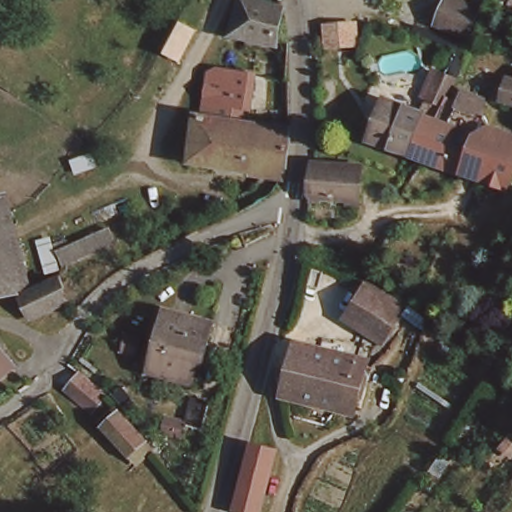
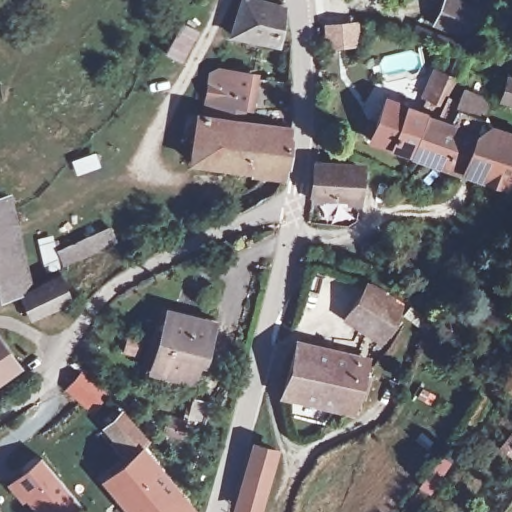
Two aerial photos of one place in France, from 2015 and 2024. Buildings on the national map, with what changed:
unchanged [(268,0),(279,3),(273,40),(226,30),(235,0),(268,0)]
unchanged [(446,0),(458,0),(476,7),(463,37),(435,25),(446,0)]
unchanged [(264,77),(260,110),(248,107),(244,107),(242,121),(293,129),(287,179),(191,162),(198,114),(207,116),(210,96),(214,68),(221,69),(253,75),(264,77)]
unchanged [(425,116),(431,99),(427,98),(436,72),(455,79),(446,99),(444,102),(459,107),(464,94),(485,102),(480,116),(484,118),(485,115),(499,139),(506,136),(507,134),(512,136),(512,173),(506,189),(481,179),(465,172),(411,154),(370,140),(388,99),(425,116)]
unchanged [(502,100),(507,77),(512,79),(512,103),(502,100)]
unchanged [(312,201),(315,166),(363,169),(358,205),(349,204),(321,202),(312,201)]
unchanged [(0,289),(0,192),(21,284),(0,289)]
unchanged [(59,251),(110,228),(116,241),(65,265),(59,251)]
unchanged [(64,296),(27,313),(17,292),(55,276),(64,296)]
unchanged [(399,301),(379,333),(344,310),(363,278),(399,301)]
unchanged [(153,341),(158,342),(163,323),(152,321),(156,305),(167,307),(205,318),(212,320),(201,359),(194,357),(189,377),(146,365),(141,362),(147,340),(153,341)]
unchanged [(25,366),(0,383),(0,333),(1,332),(25,366)]
unchanged [(351,411),(278,392),(292,342),(364,360),(351,411)]
unchanged [(94,412),(69,391),(83,374),(108,396),(94,412)]
demolished [(106,417),(122,403),(154,438),(139,453),(106,417)]
new [(142,451),(187,505),(178,512),(133,512),(108,482),(123,472),(119,467),(128,460),(102,427),(122,410),(150,442),(142,451)]
unchanged [(259,440),(282,446),(261,510),(241,504),(259,440)]
new [(72,512),(35,512),(25,500),(22,502),(6,487),(15,477),(41,456),(80,506),(72,512)]

